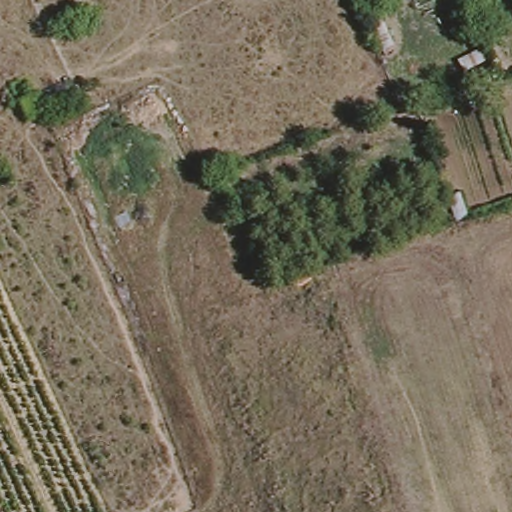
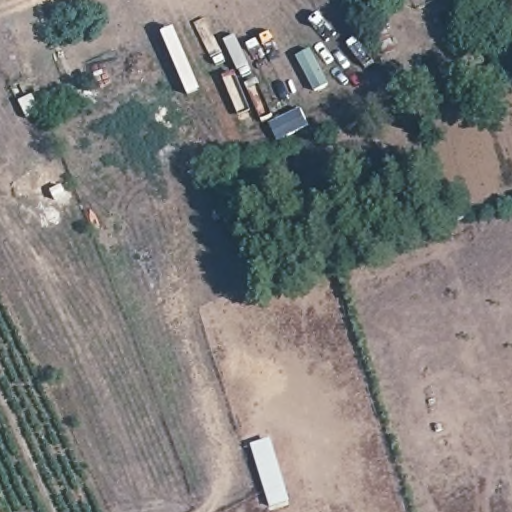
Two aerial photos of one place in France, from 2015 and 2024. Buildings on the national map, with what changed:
unchanged [(40,106),(35,107),(38,115),(29,118),(20,102),(34,95),(40,106)]
new [(251,445),(271,439),(290,501),(270,507),(251,445)]

